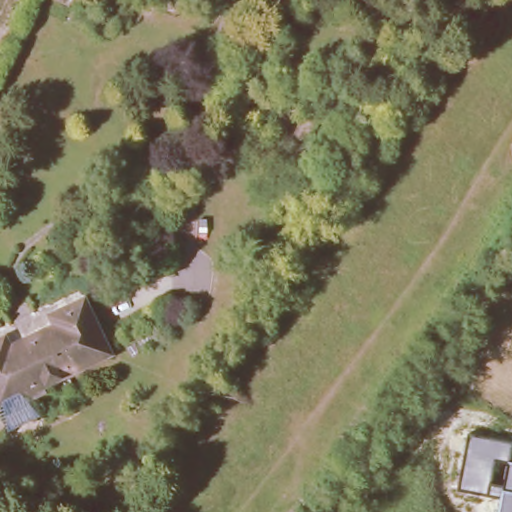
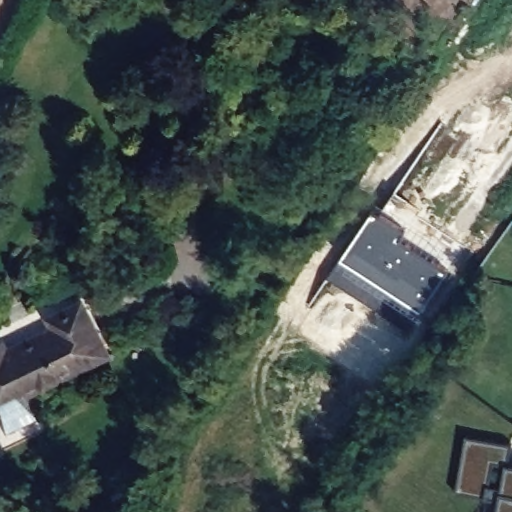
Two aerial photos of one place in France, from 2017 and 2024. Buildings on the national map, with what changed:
new [(373,210),(406,230),(401,238),(450,271),(422,313),(340,258),(373,210)]
unchanged [(53,326),(49,317),(82,300),(108,353),(28,392),(40,415),(38,420),(31,424),(26,420),(17,425),(16,431),(10,434),(0,415),(0,341),(3,339),(8,349),(53,326)]
unchanged [(494,459),(488,485),(504,487),(509,465),(512,465),(512,512),(497,512),(500,498),(486,496),(456,491),(466,435),(510,444),(508,461),(494,459)]

